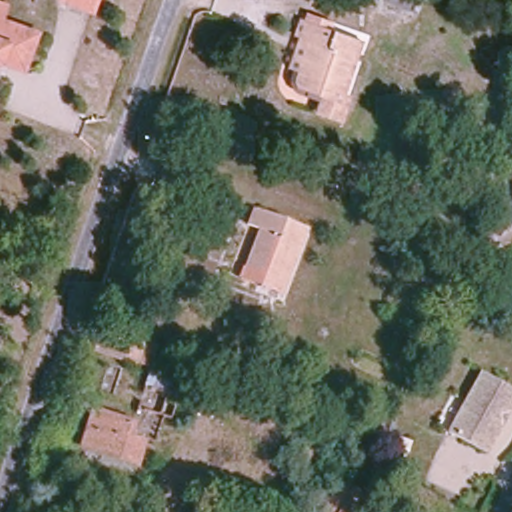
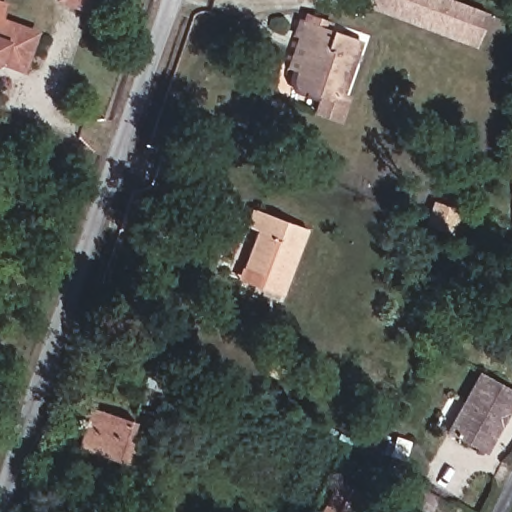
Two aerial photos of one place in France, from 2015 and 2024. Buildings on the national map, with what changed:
unchanged [(45,32),(35,61),(11,55),(0,62),(0,0),(5,2),(1,15),(45,32)]
unchanged [(62,0),(99,0),(95,13),(62,0)]
new [(377,0),(454,0),(490,12),(477,46),(374,8),(377,0)]
demolished [(383,0),(412,0),(410,6),(383,0)]
unchanged [(363,35),(343,94),(330,89),(325,100),(294,89),(301,67),(285,61),(301,14),(363,35)]
unchanged [(310,226),(285,300),(258,292),(264,277),(249,271),(260,237),(245,231),(255,205),(310,226)]
unchanged [(101,326),(157,345),(155,359),(196,371),(183,412),(175,410),(165,445),(151,441),(141,465),(89,446),(101,411),(131,421),(150,367),(120,358),(94,348),(101,326)]
unchanged [(488,455),(452,432),(483,374),(512,389),(512,412),(488,455)]
unchanged [(356,512),(331,512),(344,488),(363,499),(356,512)]

